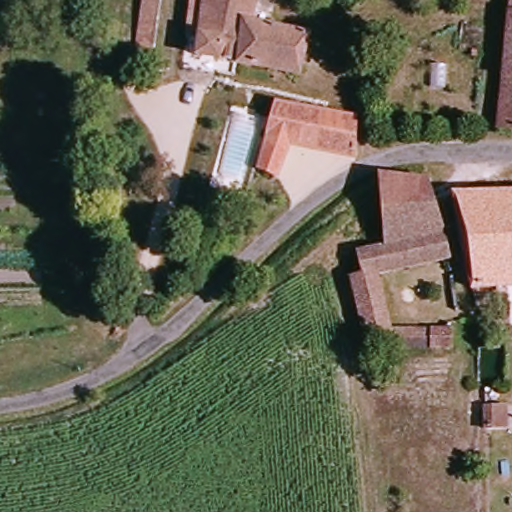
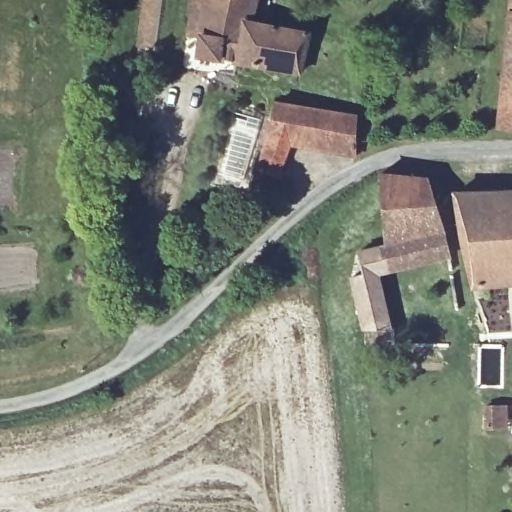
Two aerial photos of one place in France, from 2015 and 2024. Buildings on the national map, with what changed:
unchanged [(164,0),(155,56),(137,49),(144,0),(164,0)]
unchanged [(308,35),(302,80),(198,61),(207,0),(256,0),(251,22),(308,35)]
unchanged [(512,134),(502,134),(512,17),(512,10),(512,134)]
unchanged [(280,105),(364,123),(356,161),(287,152),(278,175),(251,166),(270,147),(280,105)]
unchanged [(434,189),(447,237),(388,250),(385,176),(434,189)]
unchanged [(453,200),(512,197),(512,290),(471,292),(453,200)]
unchanged [(388,250),(447,237),(453,265),(392,275),(388,250)]
unchanged [(392,332),(368,332),(356,282),(363,277),(362,256),(388,250),(392,275),(381,277),(392,332)]
unchanged [(452,339),(453,356),(395,350),(392,332),(452,339)]
unchanged [(512,405),(512,428),(482,428),(482,405),(512,405)]

